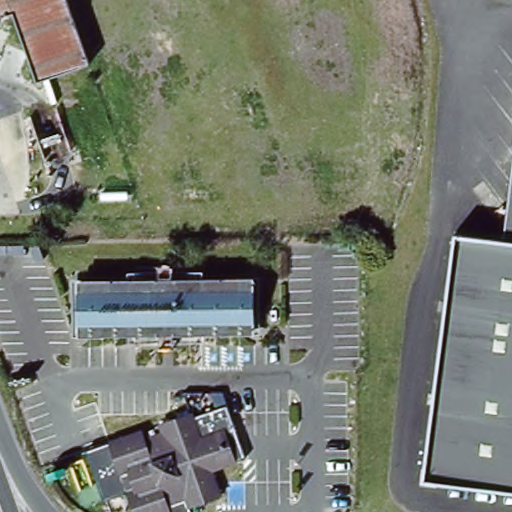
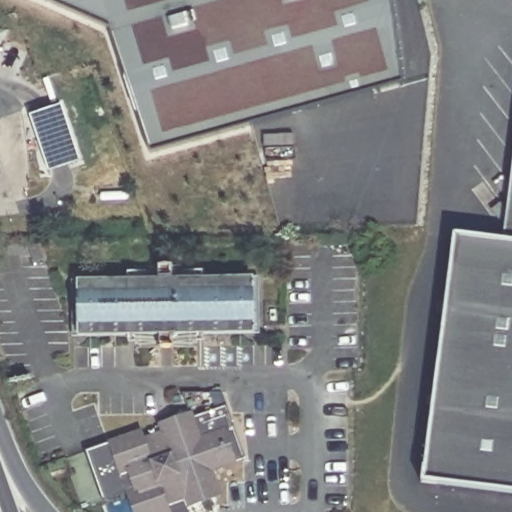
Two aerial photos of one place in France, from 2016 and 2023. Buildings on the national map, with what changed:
demolished [(88,69),(59,77),(34,10),(12,19),(0,23),(0,0),(63,0),(88,69)]
new [(149,153),(108,26),(48,0),(390,0),(402,84),(149,153)]
new [(49,171),(30,115),(61,105),(80,161),(49,171)]
unchanged [(512,160),(512,239),(502,238),(512,160)]
unchanged [(453,235),(454,232),(474,235),(512,239),(512,491),(423,480),(453,235)]
unchanged [(74,285),(251,282),(251,330),(75,333),(74,285)]
unchanged [(134,491),(128,475),(119,477),(108,443),(141,432),(143,440),(161,434),(158,426),(190,416),(199,441),(223,433),(234,465),(211,473),(219,500),(188,510),(186,502),(168,508),(169,512),(131,512),(125,495),(134,491)]

